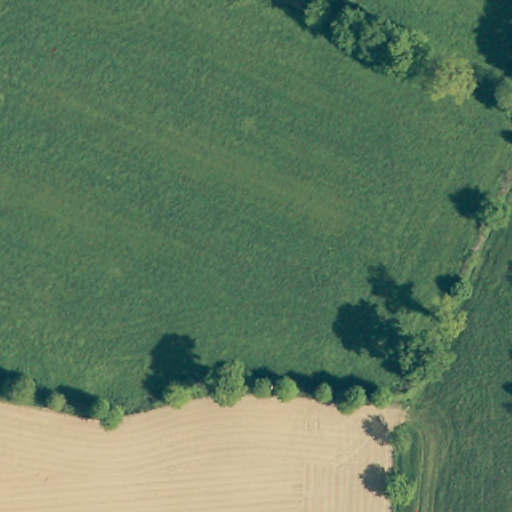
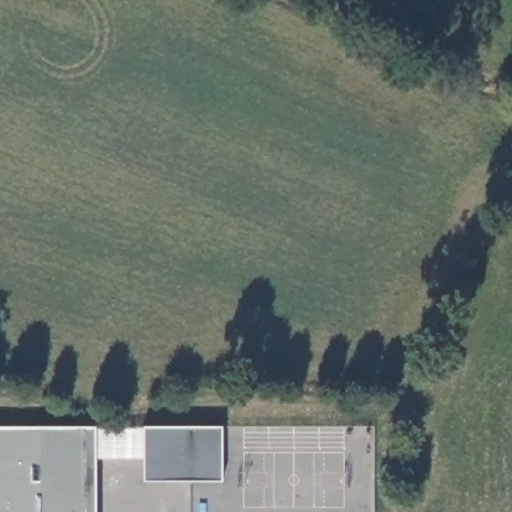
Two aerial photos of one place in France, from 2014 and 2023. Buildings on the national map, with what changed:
new [(95,427),(96,512),(0,512),(0,427),(95,427)]
new [(221,481),(144,481),(143,427),(220,427),(221,481)]

